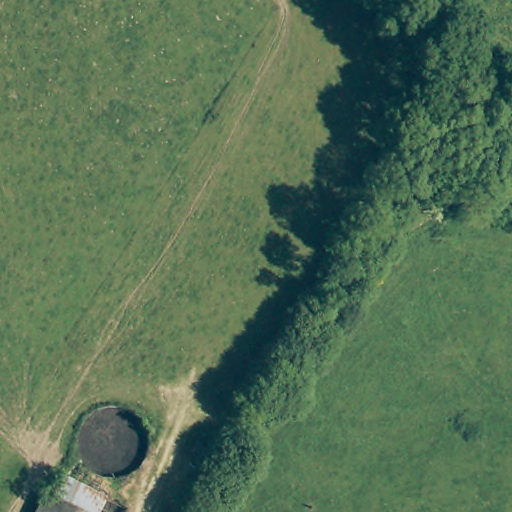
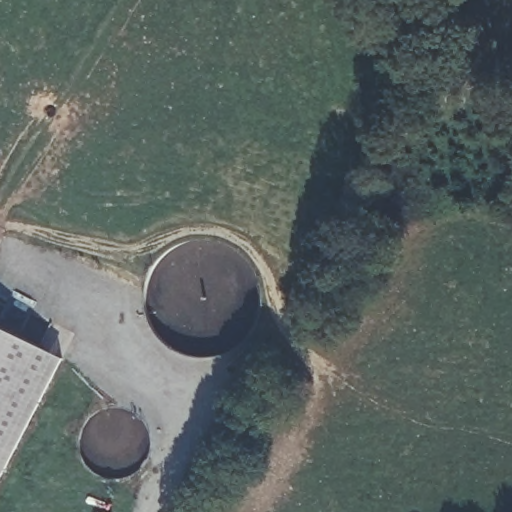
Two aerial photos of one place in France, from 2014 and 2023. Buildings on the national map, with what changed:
new [(0,480),(0,324),(65,355),(0,480)]
demolished [(44,497),(71,512),(36,512),(44,497)]

